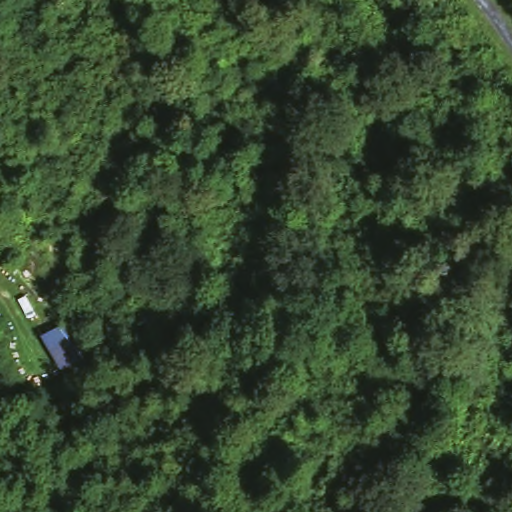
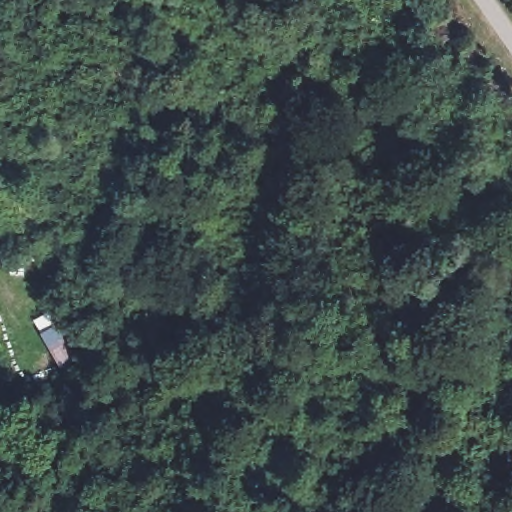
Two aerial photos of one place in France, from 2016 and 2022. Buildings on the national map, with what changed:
unchanged [(69,308),(90,348),(59,362),(49,345),(39,325),(69,308)]

